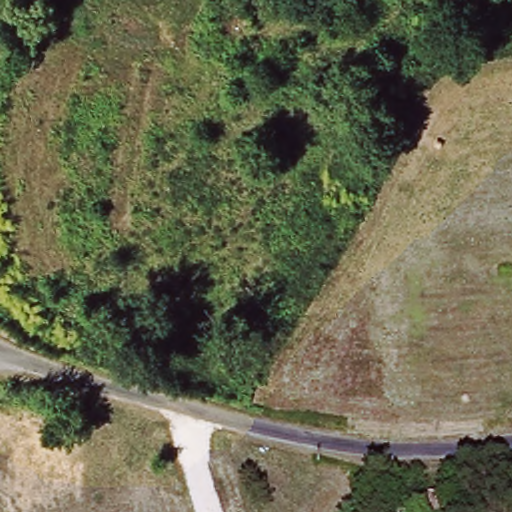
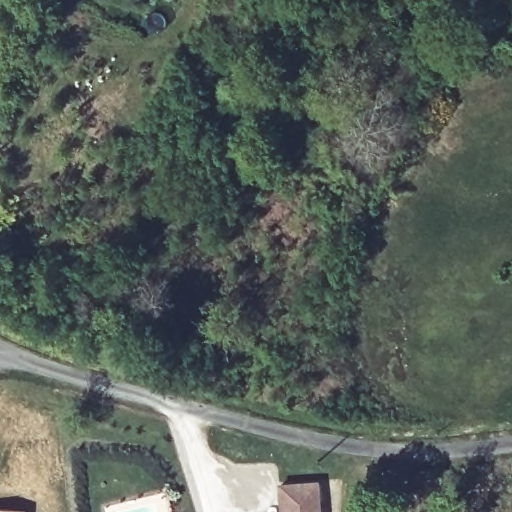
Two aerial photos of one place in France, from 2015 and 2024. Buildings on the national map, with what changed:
new [(321,512),(280,512),(278,487),(319,482),(321,512)]
unchanged [(450,512),(432,512),(432,497),(450,497),(450,512)]
new [(27,512),(0,512),(0,508),(27,510),(27,512)]

